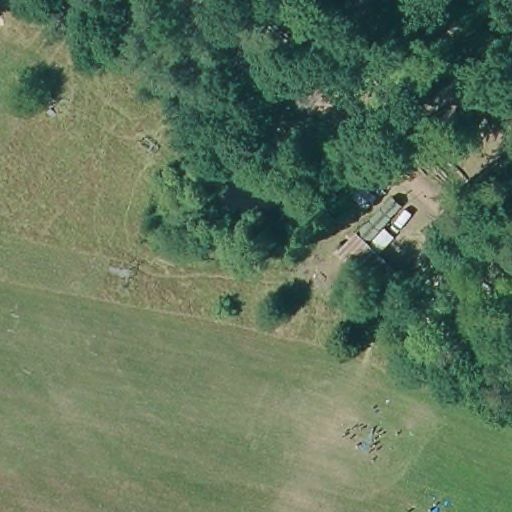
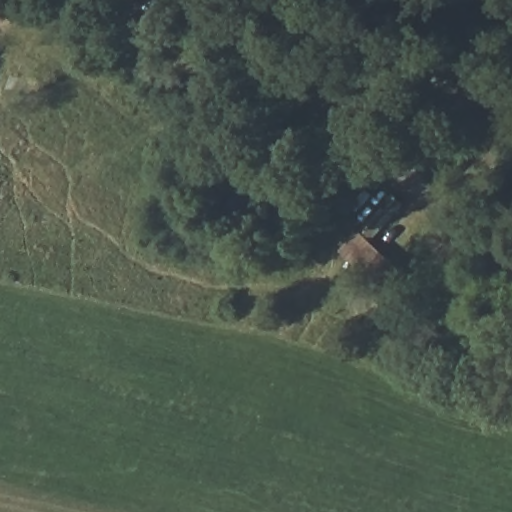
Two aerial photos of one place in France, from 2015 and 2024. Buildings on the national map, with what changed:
unchanged [(357,229),(391,196),(405,207),(371,242),(405,276),(360,315),(315,277),(357,229)]

